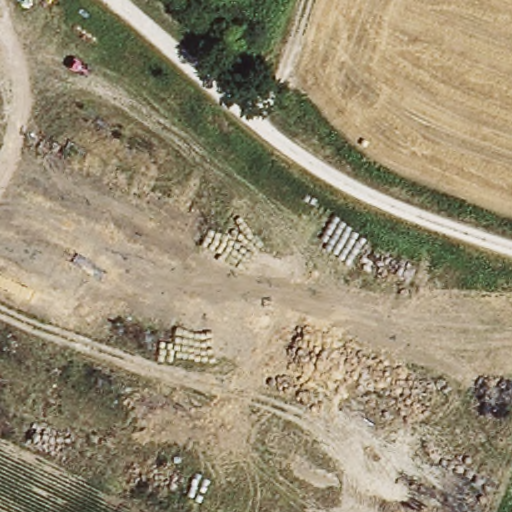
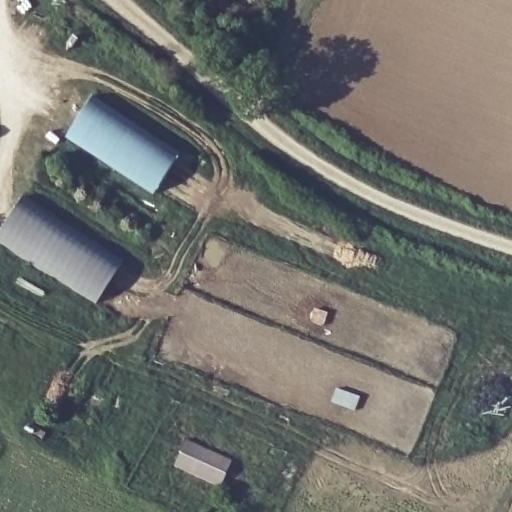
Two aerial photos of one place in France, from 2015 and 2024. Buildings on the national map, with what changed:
new [(88,97),(176,156),(149,198),(61,137),(88,97)]
new [(23,199),(111,258),(84,301),(0,242),(0,232),(23,199)]
new [(175,466),(187,440),(232,461),(221,487),(175,466)]

